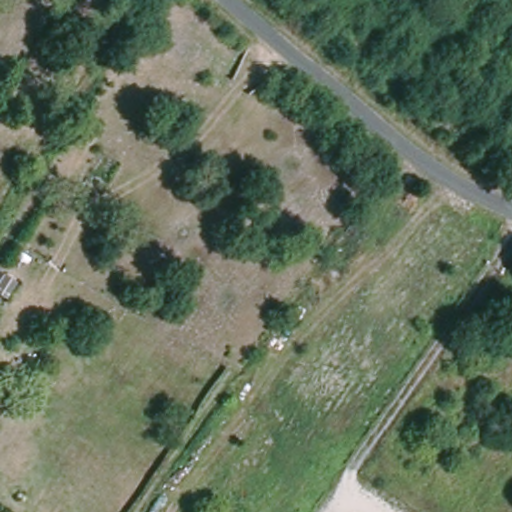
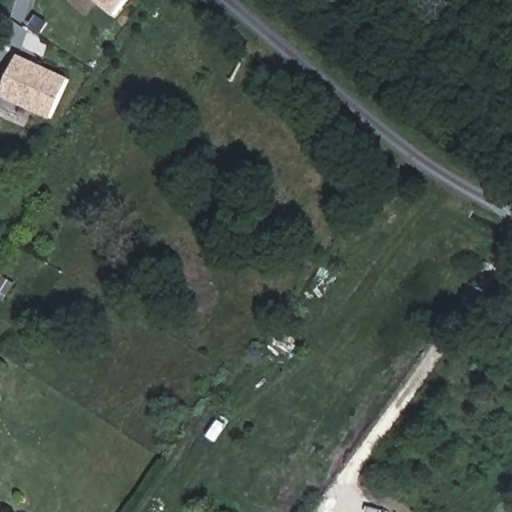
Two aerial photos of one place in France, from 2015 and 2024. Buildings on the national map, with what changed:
new [(97,0),(127,0),(114,15),(97,0)]
new [(30,61),(40,66),(70,80),(51,118),(0,94),(19,56),(30,61)]

